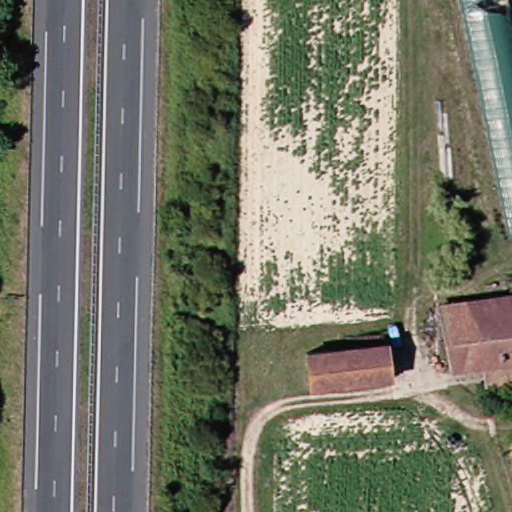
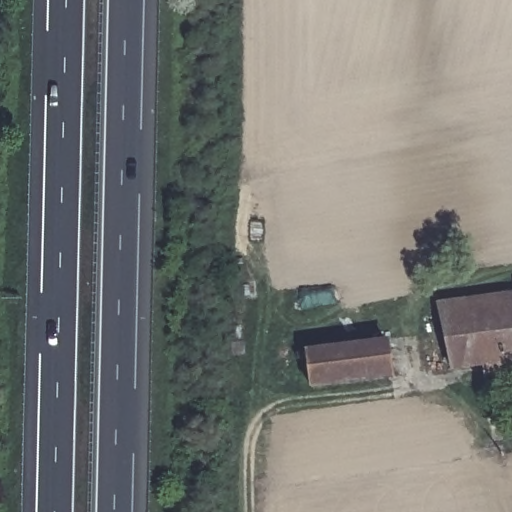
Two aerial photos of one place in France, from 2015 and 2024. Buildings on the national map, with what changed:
demolished [(511,237),(463,0),(509,0),(512,15),(512,236),(511,237)]
unchanged [(488,360),(456,365),(447,306),(512,295),(512,376),(491,380),(488,360)]
unchanged [(395,375),(320,385),(315,350),(392,340),(395,375)]

